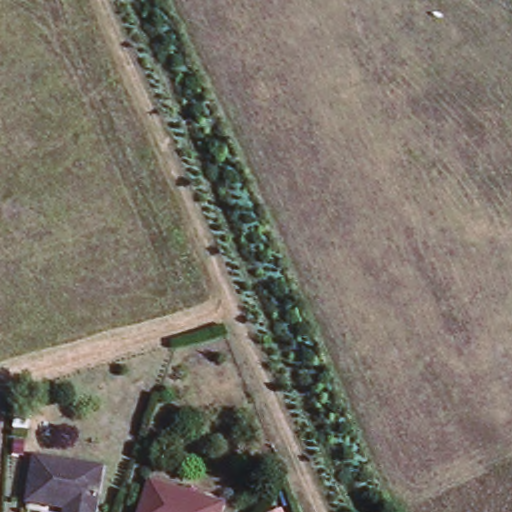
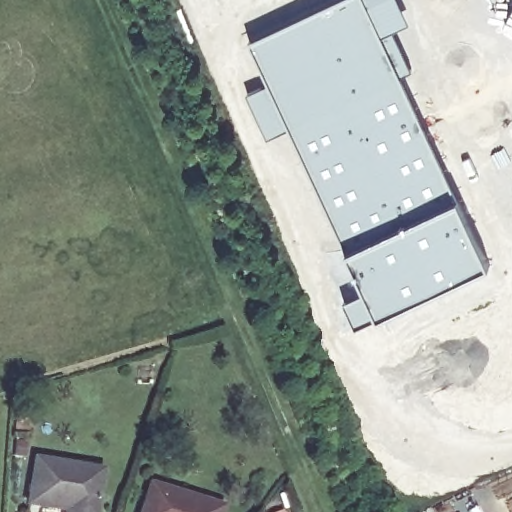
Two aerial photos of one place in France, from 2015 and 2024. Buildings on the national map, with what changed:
new [(329,0),(365,0),(383,34),(393,29),(412,69),(402,73),(459,196),(392,229),(347,248),(290,126),(268,82),(248,40),(329,0)]
new [(410,20),(393,29),(383,34),(365,0),(400,0),(410,20)]
new [(268,82),(290,126),(268,137),(247,92),(268,82)]
new [(347,248),(392,229),(459,196),(489,260),(378,313),(355,324),(342,298),(365,287),(347,248)]
unchanged [(64,512),(64,511),(26,504),(34,458),(102,470),(94,512),(64,512)]
unchanged [(140,512),(150,483),(222,506),(221,512),(140,512)]

